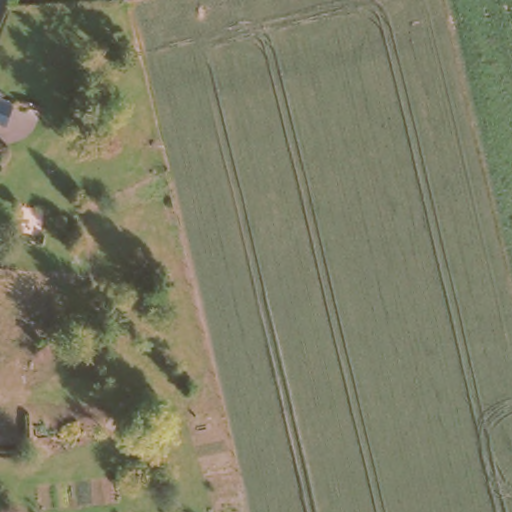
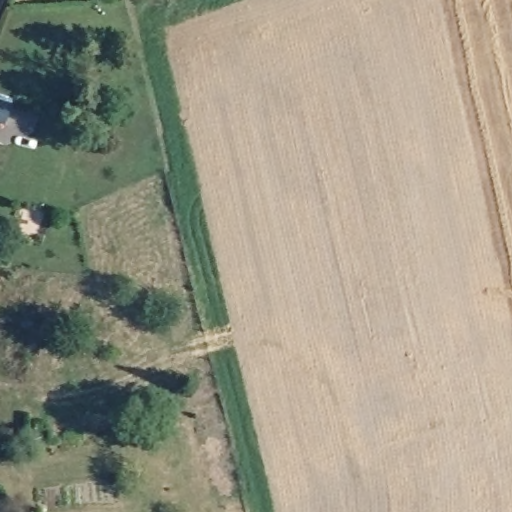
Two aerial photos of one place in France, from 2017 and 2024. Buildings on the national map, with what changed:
unchanged [(4,126),(0,124),(0,102),(12,107),(4,126)]
unchanged [(109,426),(120,433),(114,441),(103,435),(109,426)]

